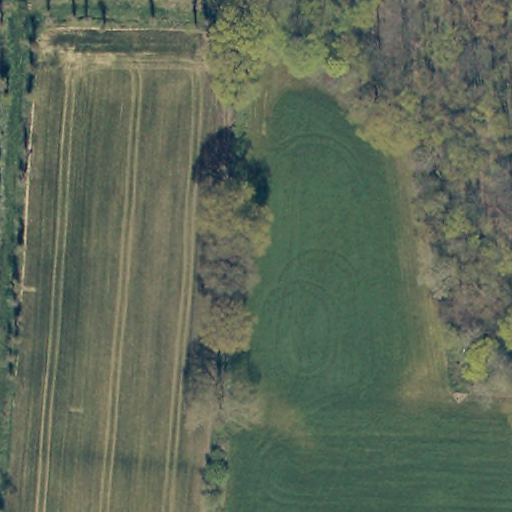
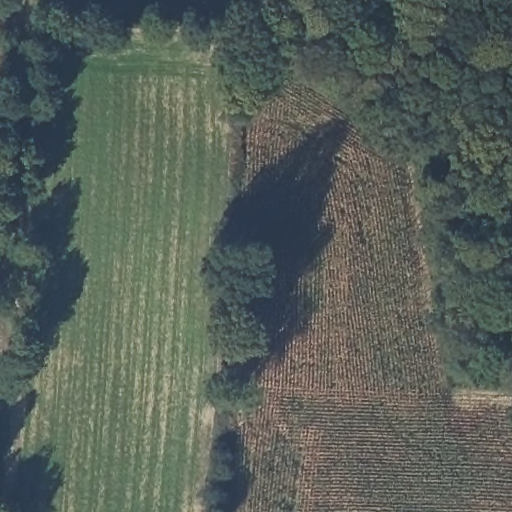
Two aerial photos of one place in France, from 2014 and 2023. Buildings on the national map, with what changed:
[]

